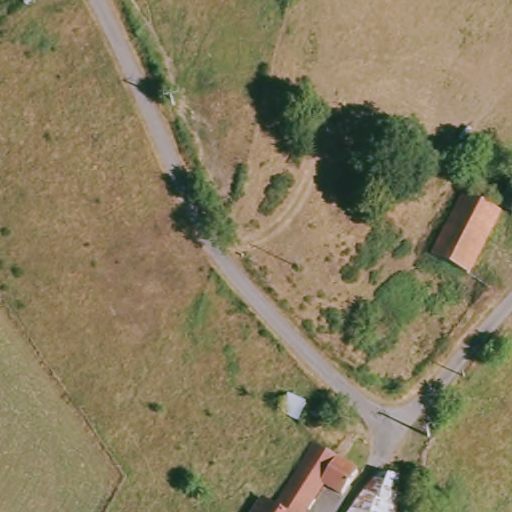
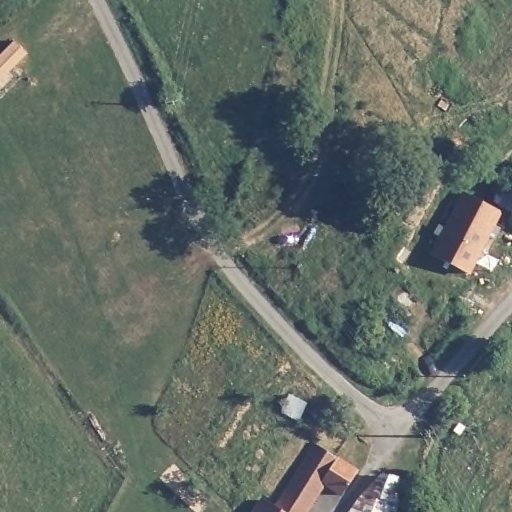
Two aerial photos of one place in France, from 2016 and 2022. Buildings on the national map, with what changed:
unchanged [(468,192),(505,210),(473,275),(435,256),(468,192)]
unchanged [(512,194),(512,212),(505,210),(512,194)]
unchanged [(349,493),(330,482),(310,512),(262,512),(270,500),(280,506),(319,443),(365,472),(349,493)]
unchanged [(386,467),(406,483),(399,512),(354,512),(386,467)]

